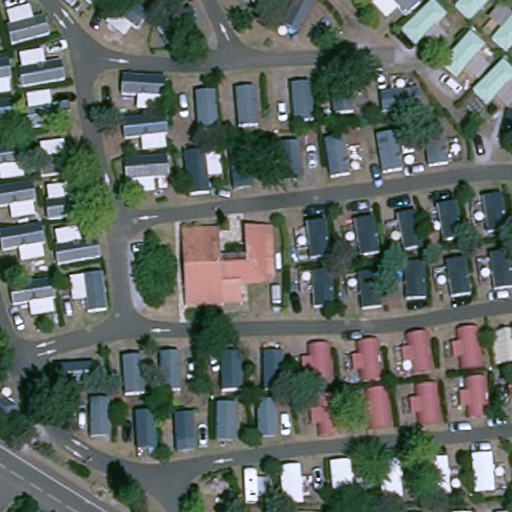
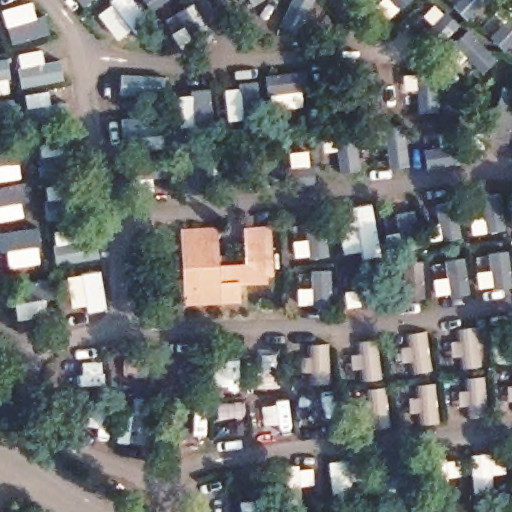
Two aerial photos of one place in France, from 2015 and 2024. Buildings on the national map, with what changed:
unchanged [(218,229),(220,259),(245,257),(246,230),(271,230),(271,286),(239,287),(240,302),(184,307),(183,231),(218,229)]

